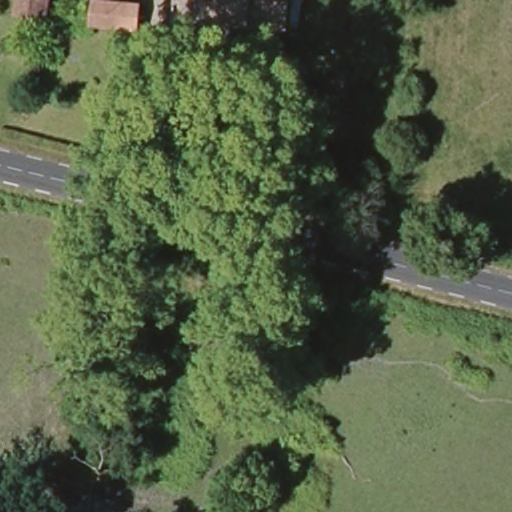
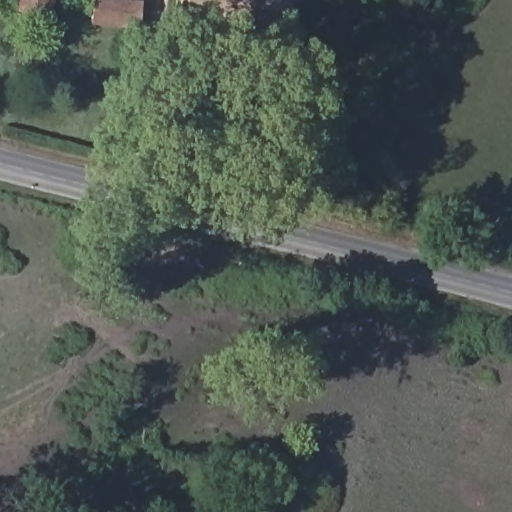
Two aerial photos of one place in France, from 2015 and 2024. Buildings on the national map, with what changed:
unchanged [(11,8),(13,0),(45,0),(44,12),(11,8)]
unchanged [(52,0),(127,0),(126,23),(79,17),(50,13),(52,0)]
unchanged [(172,25),(174,0),(288,0),(285,34),(172,25)]

